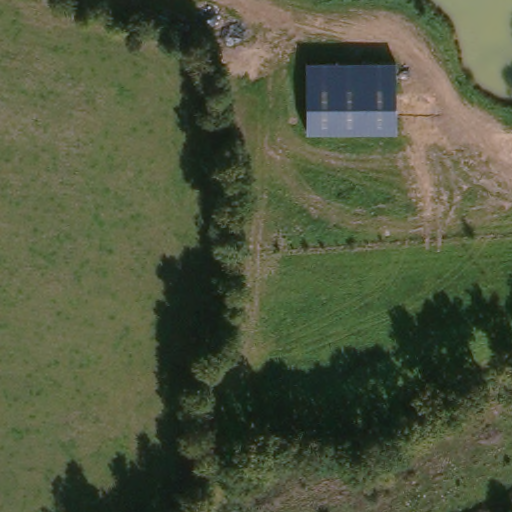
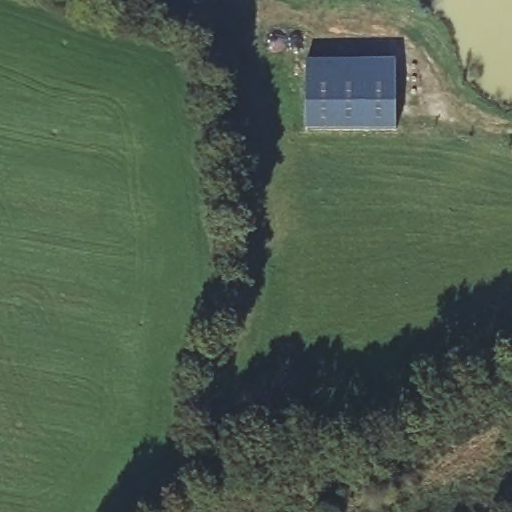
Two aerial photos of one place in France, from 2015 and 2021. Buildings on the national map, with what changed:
unchanged [(306,61),(395,61),(395,130),(306,131),(306,61)]

